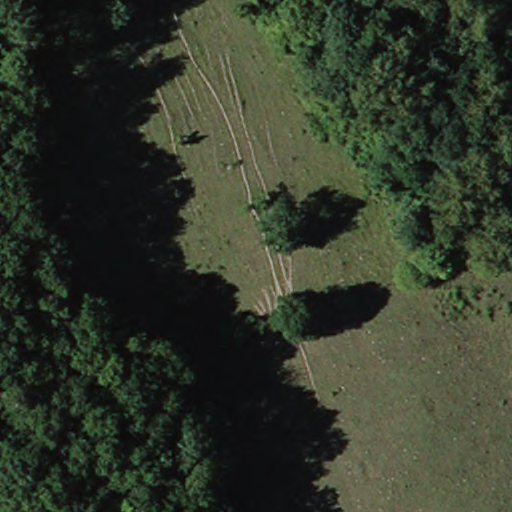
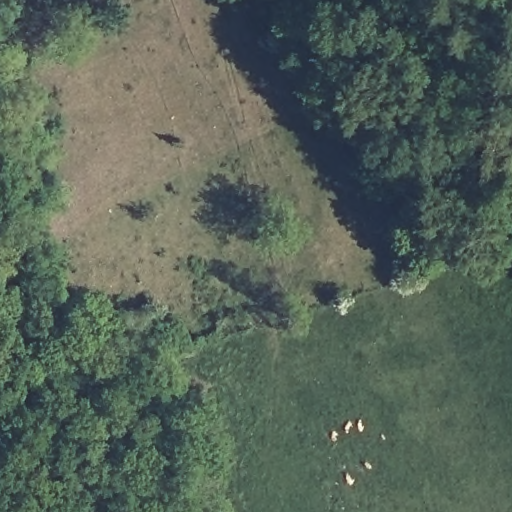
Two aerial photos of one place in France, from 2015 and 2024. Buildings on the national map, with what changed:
[]

